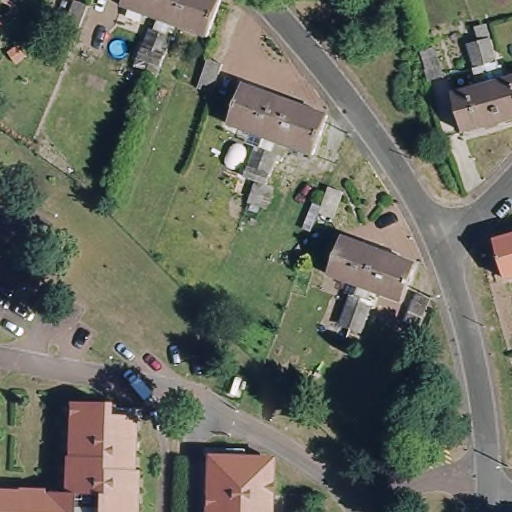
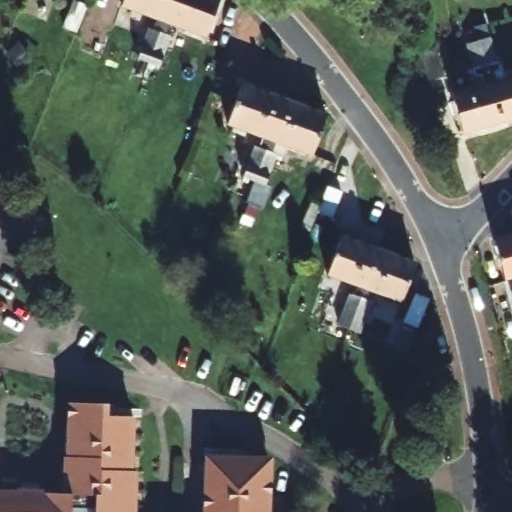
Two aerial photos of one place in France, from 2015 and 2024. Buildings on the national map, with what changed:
unchanged [(171,23),(129,8),(131,0),(179,0),(171,23)]
unchanged [(179,0),(225,0),(211,39),(171,23),(179,0)]
unchanged [(482,72),(476,74),(469,43),(465,28),(476,25),(480,40),(492,37),(500,67),(494,69),(496,77),(490,79),(484,80),(482,72)]
unchanged [(148,83),(136,79),(142,61),(153,30),(159,33),(162,26),(168,29),(174,30),(171,38),(177,40),(167,70),(160,87),(148,83)]
unchanged [(439,45),(447,75),(432,78),(425,50),(439,45)]
unchanged [(211,92),(197,87),(207,58),(222,63),(211,92)]
unchanged [(491,81),(512,76),(512,117),(501,120),(491,81)]
unchanged [(463,130),(452,92),(491,81),(501,120),(463,130)]
unchanged [(275,142),(232,126),(247,87),(289,102),(275,142)]
unchanged [(289,102),(331,119),(316,158),(275,142),(289,102)]
unchanged [(248,180),(259,151),(264,152),(266,146),(272,149),(277,150),(275,157),(279,159),(269,188),(260,185),(248,180)]
unchanged [(342,191),(332,216),(319,211),(328,185),(342,191)]
unchanged [(365,290),(327,275),(341,239),(380,254),(365,290)]
unchanged [(507,283),(495,245),(512,240),(512,281),(507,283)]
unchanged [(416,267),(402,305),(365,290),(380,254),(416,267)]
unchanged [(430,295),(419,325),(405,320),(416,290),(430,295)]
unchanged [(343,347),(349,332),(336,327),(347,298),(354,300),(357,293),(363,296),(369,298),(366,305),(372,307),(361,336),(355,351),(343,347)]
unchanged [(436,362),(429,380),(411,373),(418,355),(436,362)]
unchanged [(12,489),(39,490),(39,493),(59,493),(60,457),(64,457),(64,402),(102,403),(102,415),(130,415),(129,470),(135,470),(134,512),(0,512),(0,492),(12,492),(12,489)]
unchanged [(268,454),(267,512),(202,512),(203,453),(268,454)]

